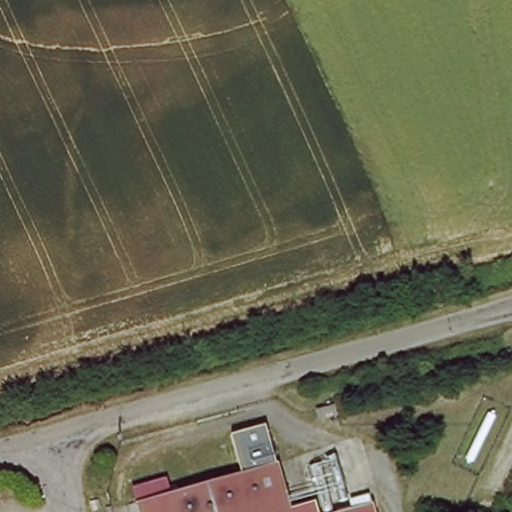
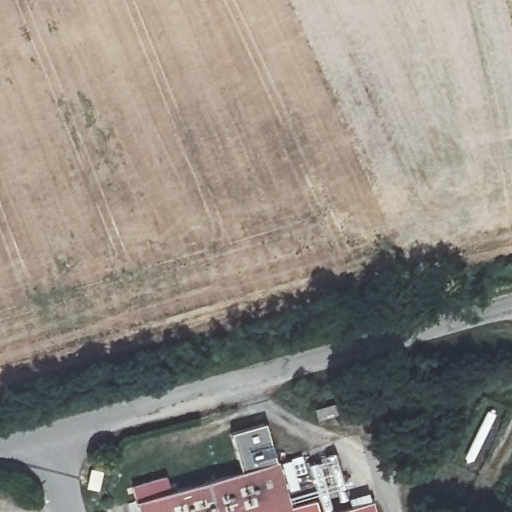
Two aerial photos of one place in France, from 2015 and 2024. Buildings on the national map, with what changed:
unchanged [(242,472),(232,432),(267,423),(288,510),(310,504),(312,512),(138,512),(129,479),(168,469),(173,489),(242,472)]
unchanged [(375,502),(378,512),(336,512),(375,502)]

